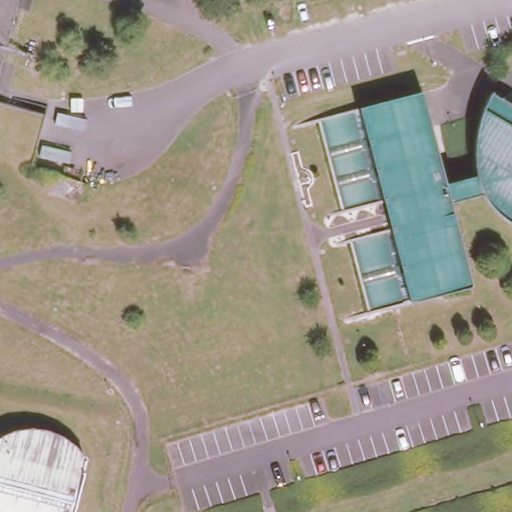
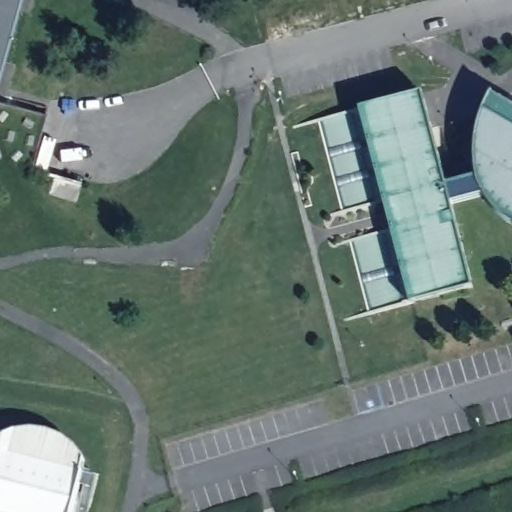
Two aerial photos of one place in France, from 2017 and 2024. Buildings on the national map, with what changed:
unchanged [(0,65),(0,0),(18,0),(0,65)]
unchanged [(421,91),(445,182),(475,174),(474,171),(473,167),(473,164),(473,161),(473,157),(472,152),(473,148),(473,143),(473,139),(474,135),(475,128),(477,121),(479,114),(481,108),(484,102),(486,96),(490,91),(512,104),(512,223),(503,218),(495,210),(488,202),(482,193),(450,202),(471,285),(366,312),(347,238),(390,226),(392,225),(395,224),(394,210),(386,211),(384,200),(341,211),(317,117),(421,91)]
unchanged [(46,110),(31,166),(0,158),(0,98),(46,110)]
unchanged [(77,198),(47,190),(51,173),(61,175),(65,163),(83,169),(80,180),(82,181),(77,198)]
unchanged [(13,429),(30,427),(45,429),(60,435),(74,445),(84,458),(81,470),(82,471),(72,512),(0,512),(0,435),(13,429)]

